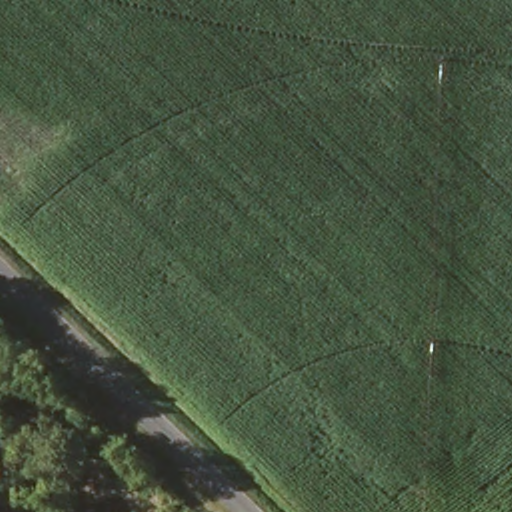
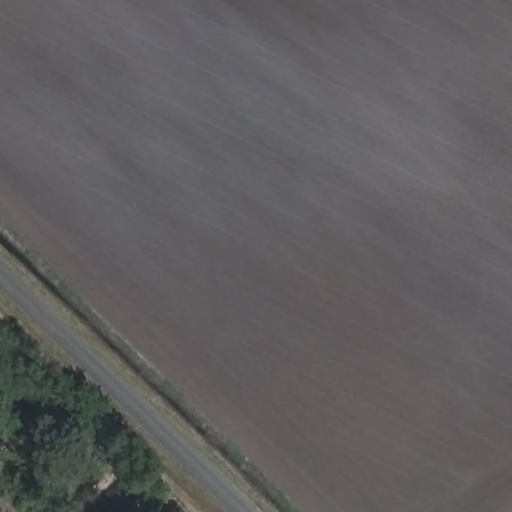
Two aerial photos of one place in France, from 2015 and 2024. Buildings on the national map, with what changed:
[]

